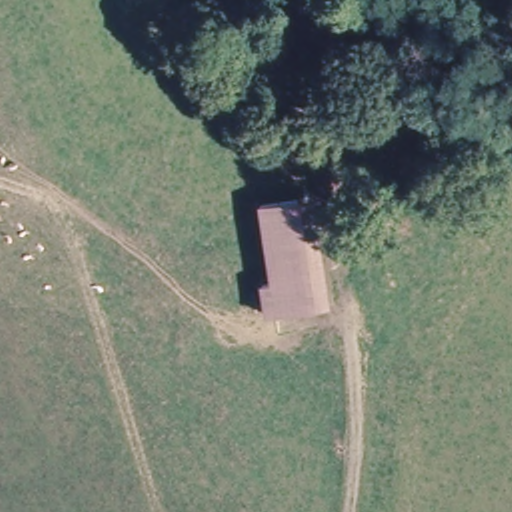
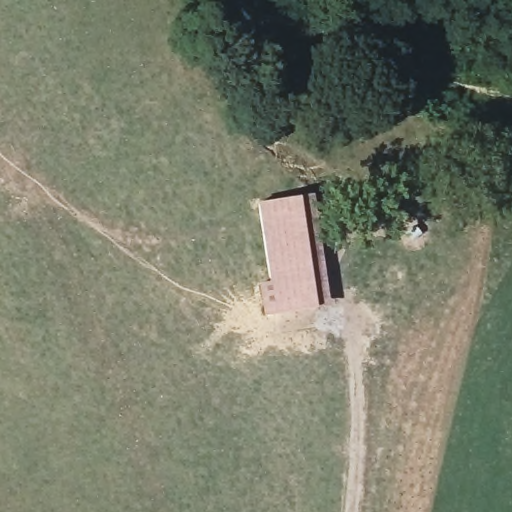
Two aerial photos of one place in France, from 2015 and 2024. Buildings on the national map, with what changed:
unchanged [(309,200),(316,236),(320,252),(331,307),(316,311),(305,254),(301,238),(294,204),(309,200)]
unchanged [(301,238),(305,254),(316,311),(266,322),(260,292),(269,290),(263,259),(260,242),(253,212),(294,204),(301,238)]

